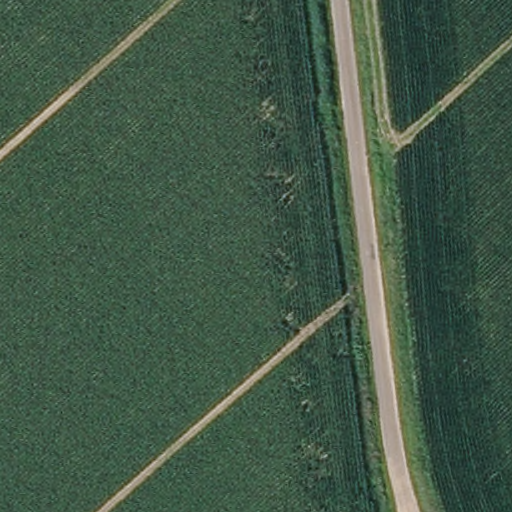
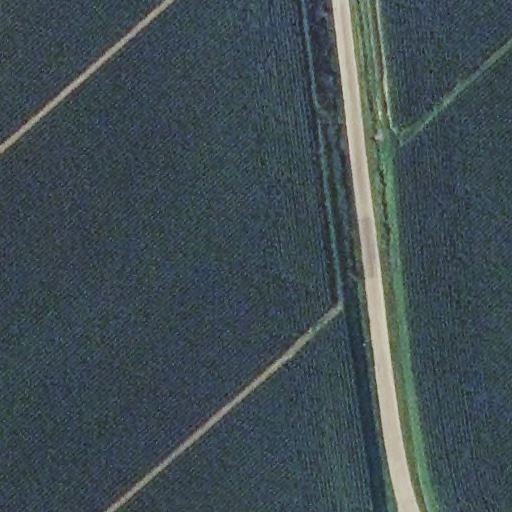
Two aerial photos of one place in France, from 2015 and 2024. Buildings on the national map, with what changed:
[]

